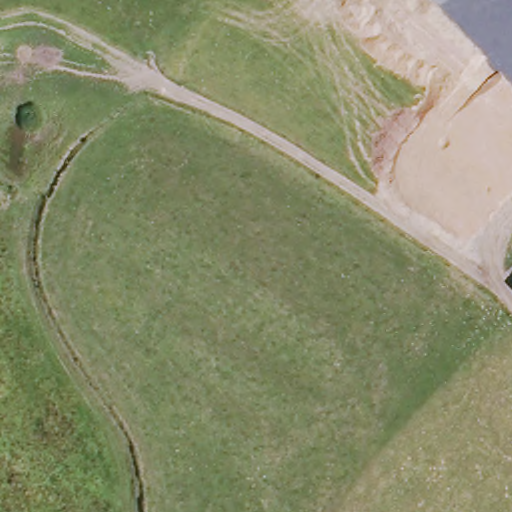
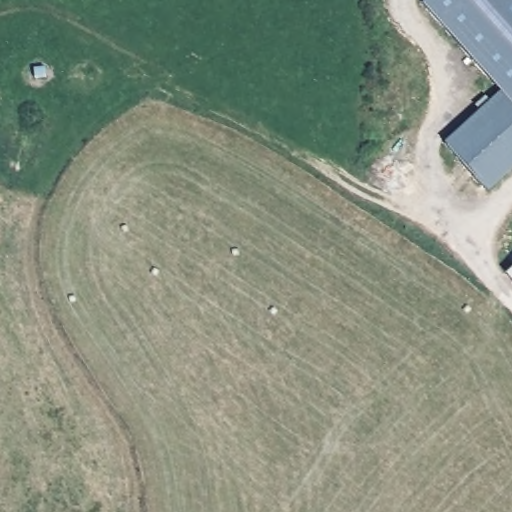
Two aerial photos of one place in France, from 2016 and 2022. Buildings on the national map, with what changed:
new [(422,0),(512,0),(512,167),(486,190),(442,142),(500,94),(420,2),(422,0)]
new [(502,274),(512,266),(512,284),(502,274)]

